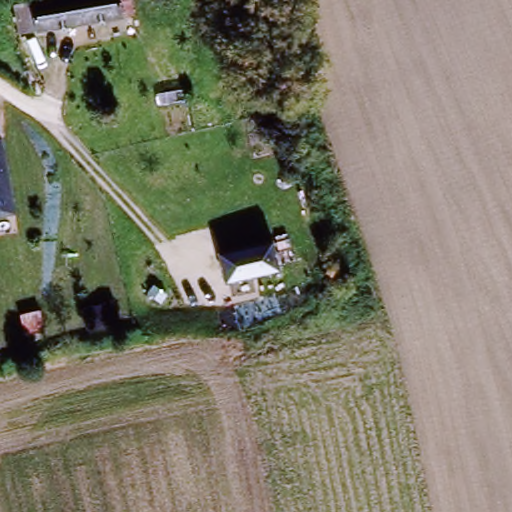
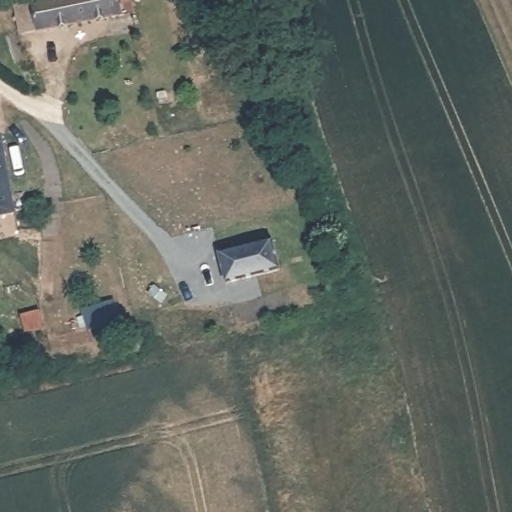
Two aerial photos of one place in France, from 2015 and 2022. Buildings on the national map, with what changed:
unchanged [(122,0),(125,16),(40,32),(34,3),(48,0),(122,0)]
unchanged [(17,212),(0,215),(0,139),(4,139),(17,212)]
unchanged [(277,242),(284,269),(227,284),(219,255),(277,242)]
unchanged [(20,347),(50,339),(54,353),(23,362),(20,347)]

